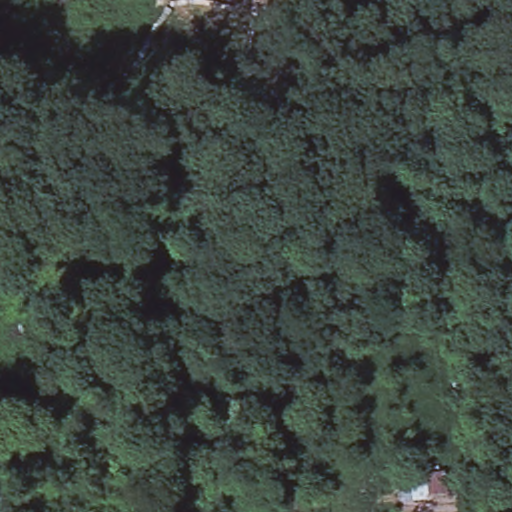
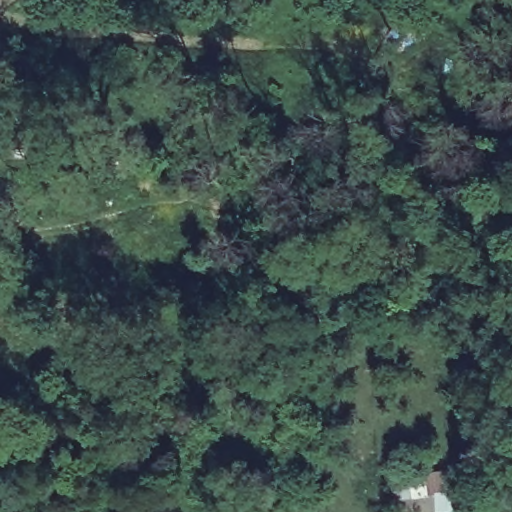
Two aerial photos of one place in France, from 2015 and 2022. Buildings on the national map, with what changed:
unchanged [(422,468),(426,492),(397,495),(392,471),(422,468)]

